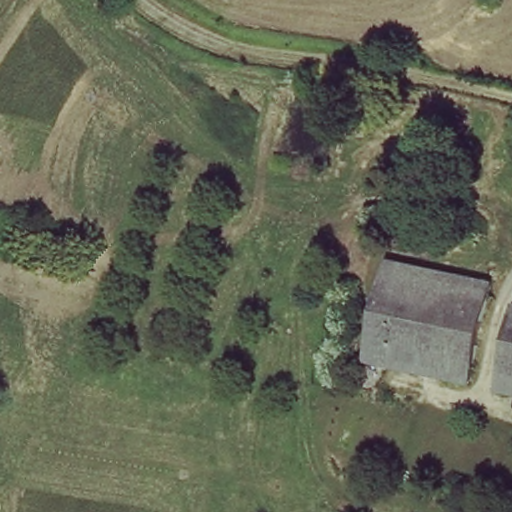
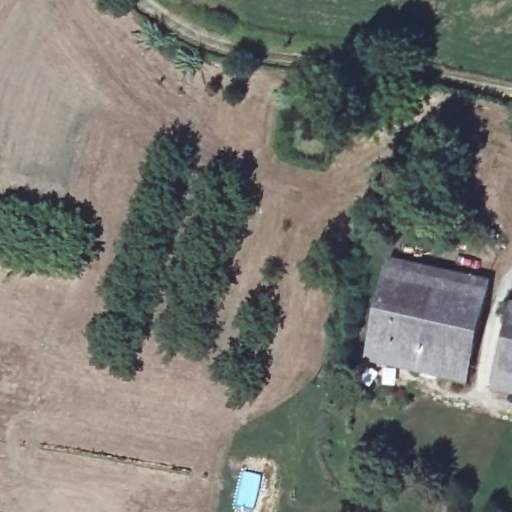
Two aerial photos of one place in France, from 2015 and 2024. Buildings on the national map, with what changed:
unchanged [(374,316),(388,258),(438,270),(423,329),(374,316)]
unchanged [(496,283),(482,343),(423,329),(438,270),(496,283)]
unchanged [(512,311),(512,378),(496,375),(512,311)]
unchanged [(364,352),(374,316),(423,329),(417,355),(414,365),(364,352)]
unchanged [(473,381),(414,365),(417,355),(423,329),(482,343),(473,381)]

